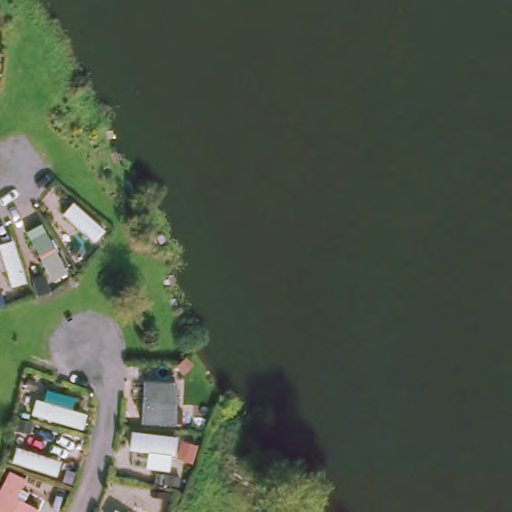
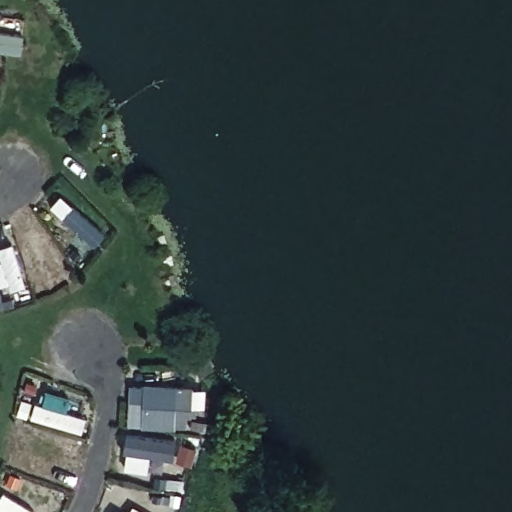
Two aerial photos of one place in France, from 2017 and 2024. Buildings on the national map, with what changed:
unchanged [(70,199),(105,232),(91,246),(58,217),(70,199)]
unchanged [(47,277),(28,242),(43,230),(66,267),(47,277)]
unchanged [(0,264),(0,245),(10,240),(32,294),(10,301),(0,264)]
unchanged [(145,385),(178,385),(178,428),(145,428),(145,385)]
unchanged [(33,398),(88,415),(83,433),(27,418),(33,398)]
unchanged [(14,434),(25,437),(22,452),(66,465),(58,482),(5,468),(14,434)]
unchanged [(130,439),(168,444),(165,478),(125,472),(130,439)]
unchanged [(18,480),(11,497),(37,506),(36,512),(0,512),(0,489),(4,474),(18,480)]
unchanged [(126,512),(116,512),(120,508),(126,512)]

